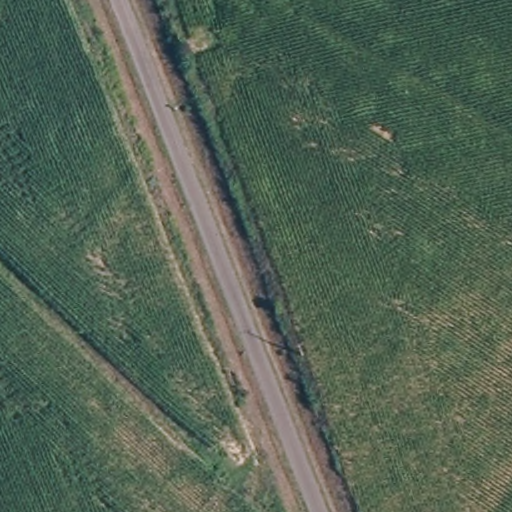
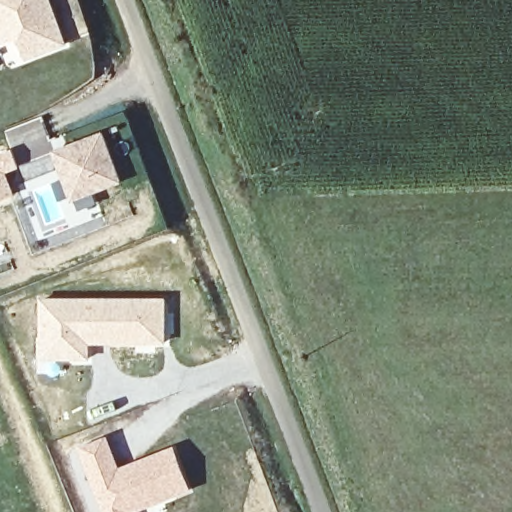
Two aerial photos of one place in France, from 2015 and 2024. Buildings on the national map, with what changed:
new [(67,46),(25,60),(17,39),(3,44),(0,36),(0,0),(51,0),(67,46)]
new [(122,183),(71,202),(52,151),(102,132),(122,183)]
new [(11,147),(19,167),(6,173),(15,194),(0,202),(0,152),(11,147)]
new [(37,295),(167,296),(167,343),(90,344),(90,361),(36,361),(37,295)]
new [(120,465),(174,444),(193,489),(139,512),(99,512),(73,449),(106,433),(120,465)]

